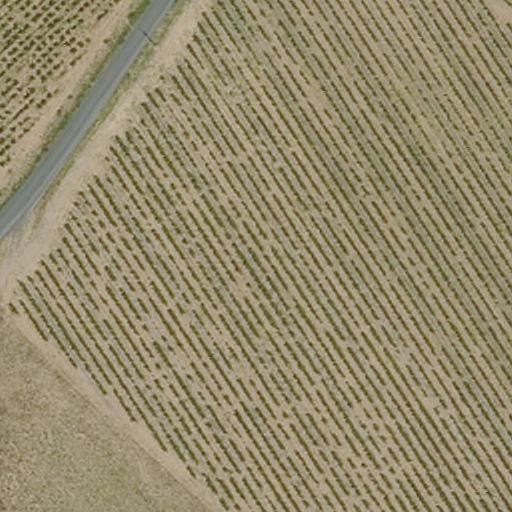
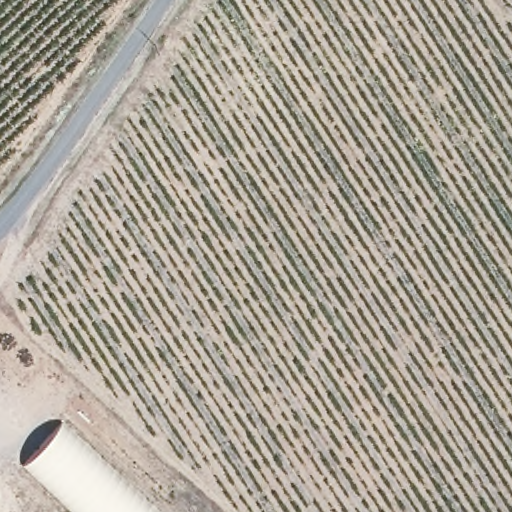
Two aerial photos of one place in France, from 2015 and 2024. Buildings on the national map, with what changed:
new [(161,512),(73,512),(23,465),(63,421),(161,512)]

